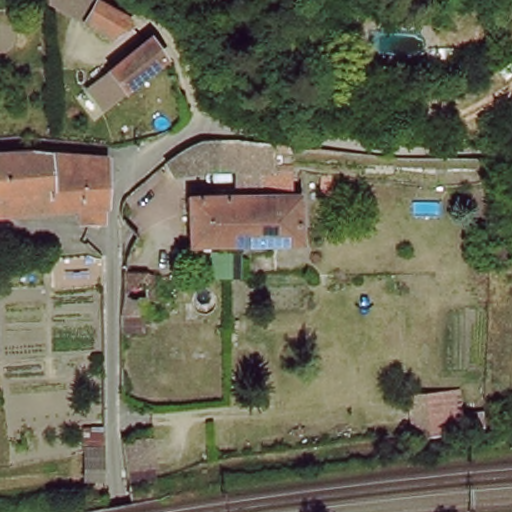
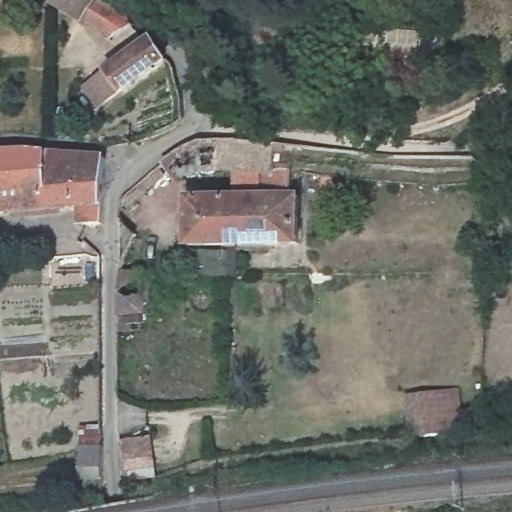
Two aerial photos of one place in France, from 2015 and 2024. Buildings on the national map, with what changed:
unchanged [(83,18),(92,0),(103,0),(112,6),(126,21),(105,38),(83,18)]
unchanged [(115,89),(103,66),(142,40),(155,60),(158,65),(115,89)]
unchanged [(238,172),(218,173),(213,142),(231,141),(246,141),(277,144),(278,171),(238,172)]
unchanged [(170,179),(170,165),(187,150),(198,145),(206,143),(213,142),(218,173),(170,179)]
unchanged [(70,203),(0,202),(0,149),(25,148),(95,156),(95,204),(95,221),(69,218),(70,203)]
unchanged [(238,172),(278,171),(294,170),(293,197),(238,198),(238,172)]
unchanged [(304,197),(306,248),(273,247),(222,249),(192,250),(191,199),(238,198),(293,197),(304,197)]
unchanged [(117,330),(117,310),(117,285),(121,270),(145,275),(147,314),(143,313),(140,333),(117,330)]
unchanged [(460,391),(463,426),(411,432),(407,397),(460,391)]
unchanged [(131,470),(125,444),(155,439),(158,465),(131,470)]
unchanged [(79,483),(80,448),(80,440),(103,441),(103,484),(79,483)]

